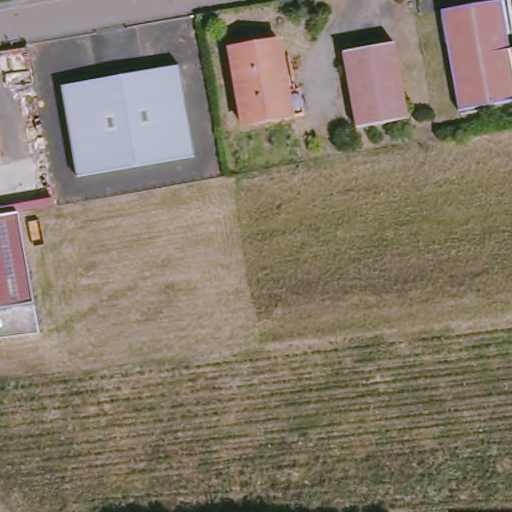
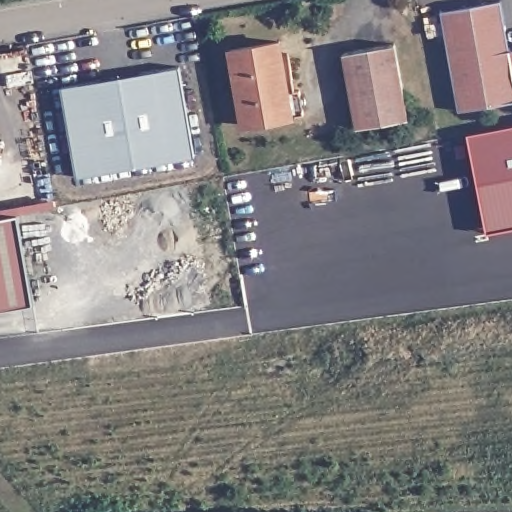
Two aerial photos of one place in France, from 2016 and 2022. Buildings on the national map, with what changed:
unchanged [(439,5),(472,0),(495,0),(504,46),(512,89),(512,102),(457,113),(439,5)]
unchanged [(245,127),(230,50),(280,40),(289,79),(299,76),(306,114),(289,118),(245,127)]
unchanged [(351,126),(339,53),(390,44),(403,119),(351,126)]
unchanged [(504,46),(512,45),(512,89),(504,46)]
unchanged [(178,66),(195,156),(75,176),(60,85),(178,66)]
new [(482,237),(468,136),(512,128),(512,232),(482,237)]
unchanged [(52,208),(17,215),(33,302),(0,308),(0,207),(52,199),(52,208)]

